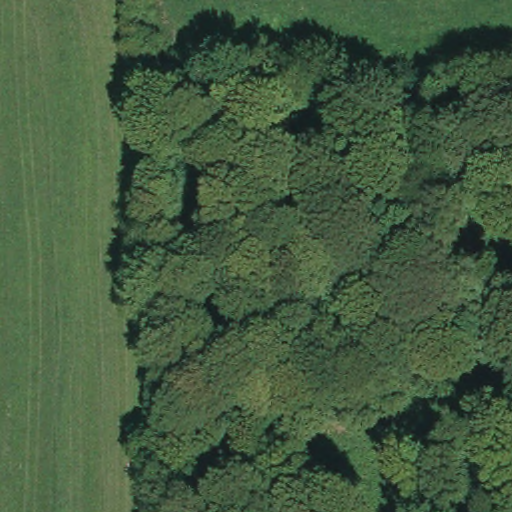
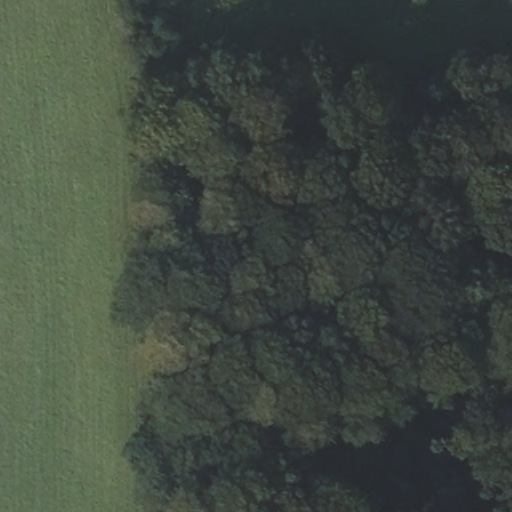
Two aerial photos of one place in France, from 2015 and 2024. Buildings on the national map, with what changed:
[]

